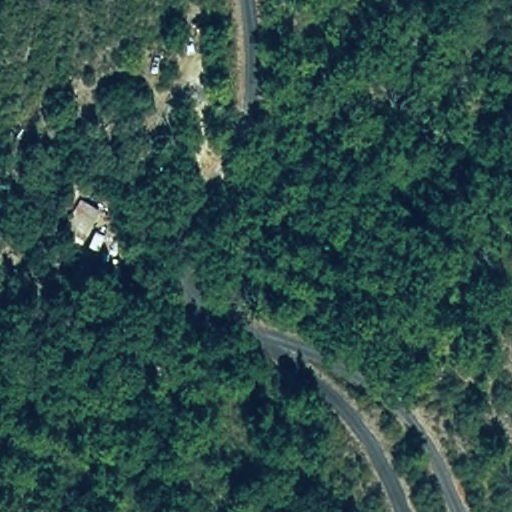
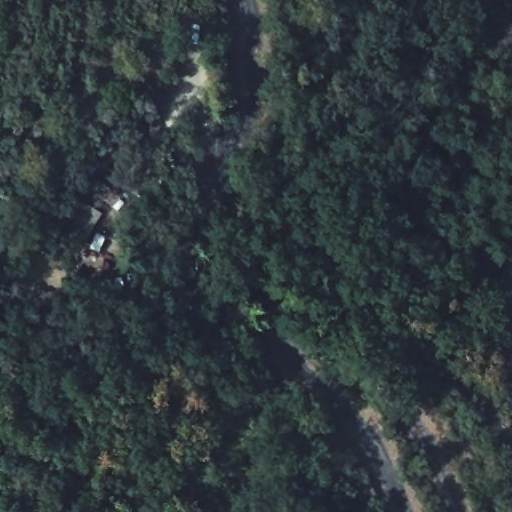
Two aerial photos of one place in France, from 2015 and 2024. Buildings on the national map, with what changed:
unchanged [(61,229),(78,196),(103,210),(85,244),(61,229)]

